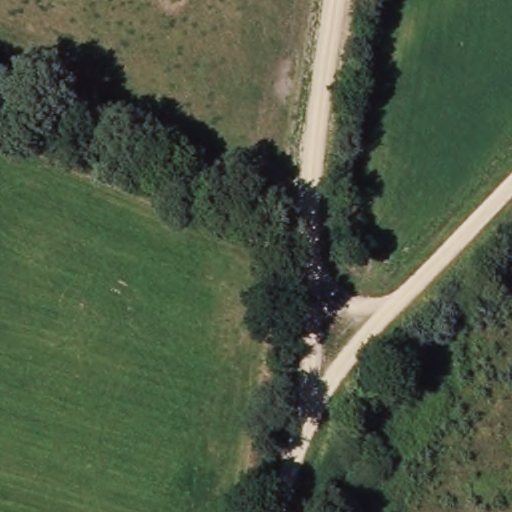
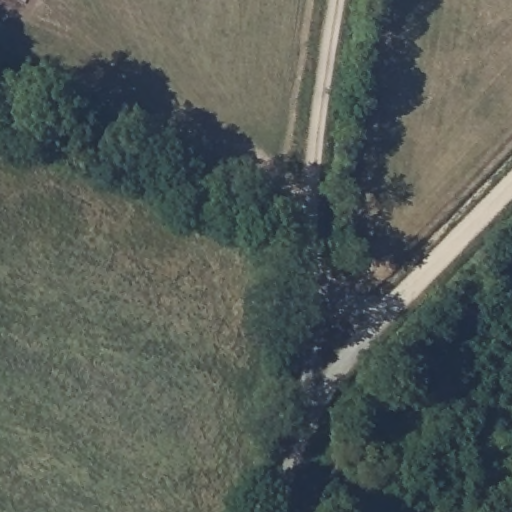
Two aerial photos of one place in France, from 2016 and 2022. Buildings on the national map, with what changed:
[]

